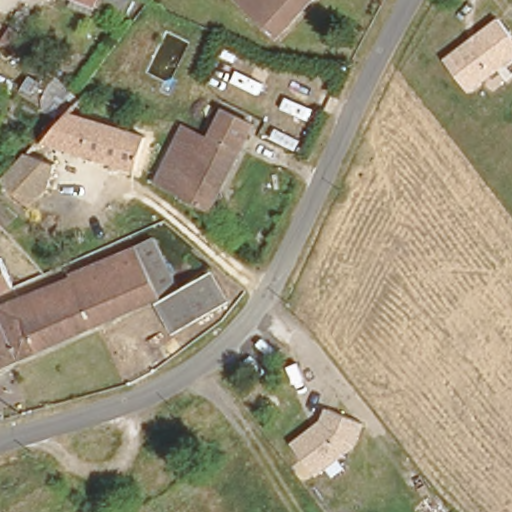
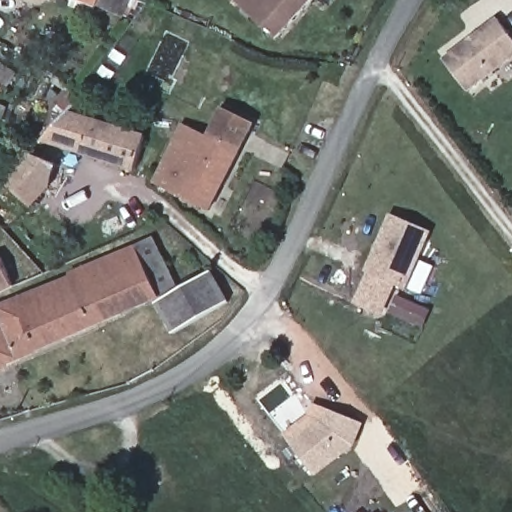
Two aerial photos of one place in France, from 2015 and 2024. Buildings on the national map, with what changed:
unchanged [(43,0),(47,0),(46,1),(43,0)]
unchanged [(75,0),(131,0),(123,19),(75,0)]
unchanged [(312,0),(275,42),(230,0),(231,0),(312,0)]
unchanged [(512,54),(467,89),(443,58),(496,16),(512,37),(512,54)]
unchanged [(0,43),(0,42),(12,21),(37,36),(22,59),(0,43)]
unchanged [(83,99),(148,119),(146,125),(154,127),(150,139),(143,136),(131,172),(46,146),(83,99)]
unchanged [(189,128),(216,141),(232,114),(256,125),(209,213),(159,188),(189,128)]
unchanged [(33,151),(65,173),(34,204),(6,179),(33,151)]
new [(368,273),(364,271),(389,214),(431,232),(407,290),(396,285),(383,315),(353,304),(368,273)]
unchanged [(1,306),(4,311),(75,279),(73,274),(156,238),(180,291),(213,278),(227,312),(172,335),(155,300),(0,369),(0,307),(1,306)]
unchanged [(7,258),(17,279),(0,287),(0,261),(7,258)]
new [(389,314),(397,295),(432,311),(423,329),(389,314)]
unchanged [(355,447),(316,477),(291,443),(321,421),(325,409),(365,423),(355,447)]

